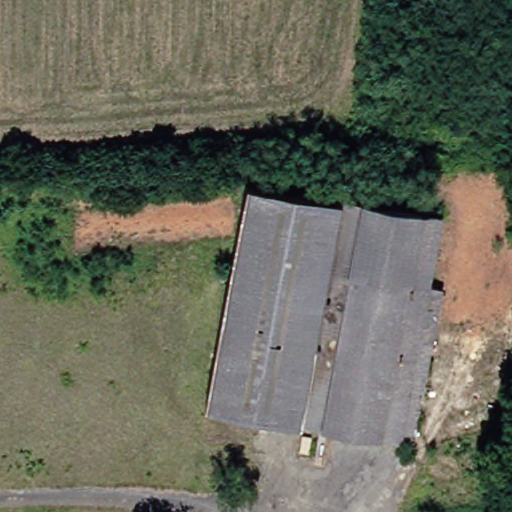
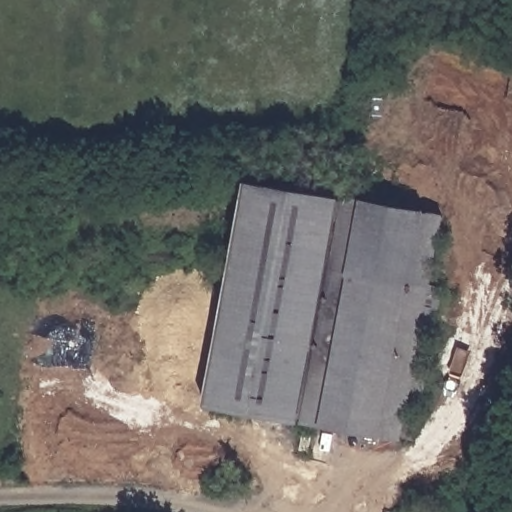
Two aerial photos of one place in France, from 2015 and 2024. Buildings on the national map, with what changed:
unchanged [(216,400),(257,179),(452,215),(440,281),(453,284),(443,337),(430,334),(410,436),(216,400)]
unchanged [(424,439),(410,436),(430,334),(443,337),(424,439)]

